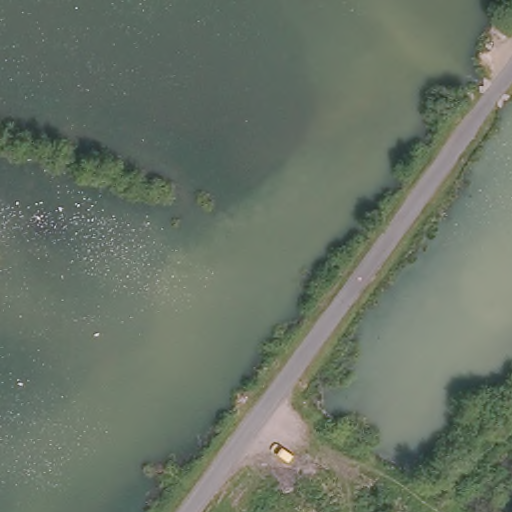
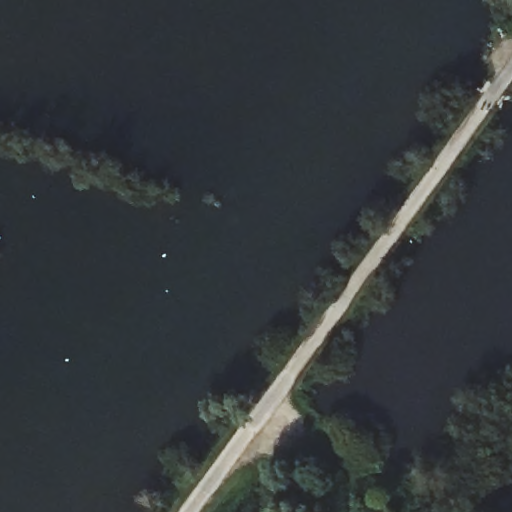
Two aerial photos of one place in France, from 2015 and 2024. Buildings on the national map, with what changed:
unchanged [(337,437),(327,449),(306,433),(315,422),(337,437)]

